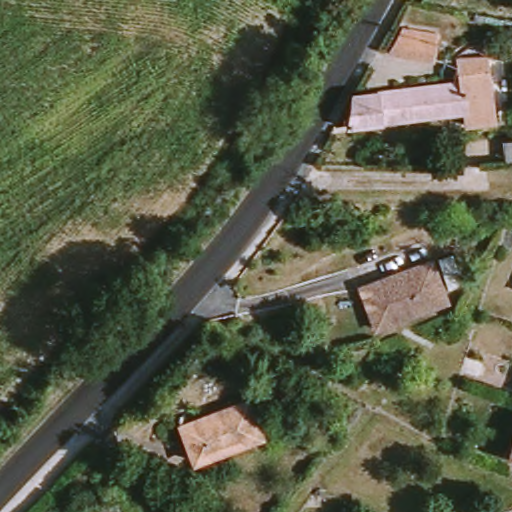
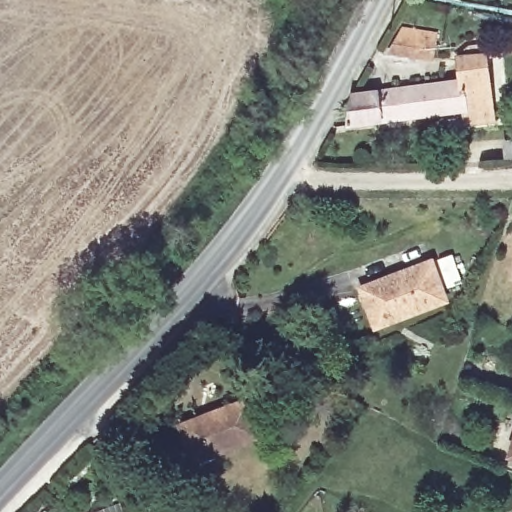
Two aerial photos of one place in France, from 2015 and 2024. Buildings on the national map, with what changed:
unchanged [(414,27),(445,33),(441,56),(404,48),(414,27)]
unchanged [(469,77),(468,56),(499,51),(504,117),(475,121),(474,106),(362,123),(362,93),(469,77)]
unchanged [(411,272),(410,267),(444,255),(459,296),(435,303),(436,307),(389,324),(376,284),(411,272)]
unchanged [(270,435),(207,461),(195,430),(193,422),(225,412),(257,396),(270,435)]

